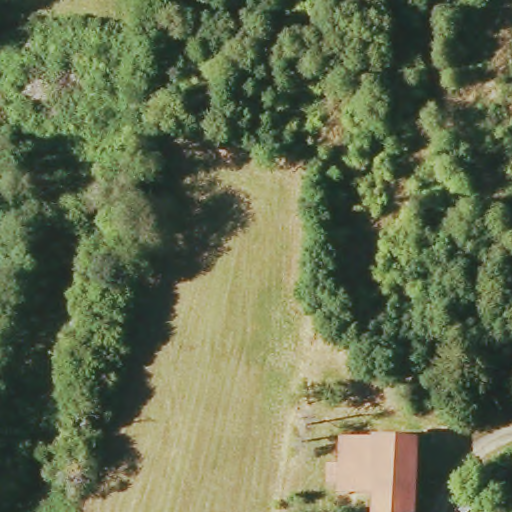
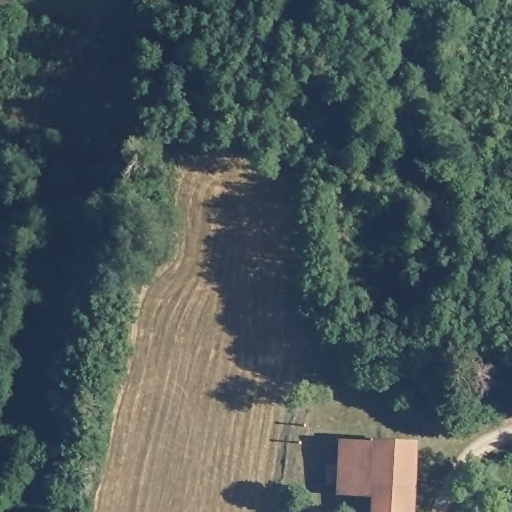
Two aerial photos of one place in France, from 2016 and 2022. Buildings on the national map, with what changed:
unchanged [(337,494),(342,441),(416,446),(411,506),(411,512),(370,512),(372,498),(337,494)]

